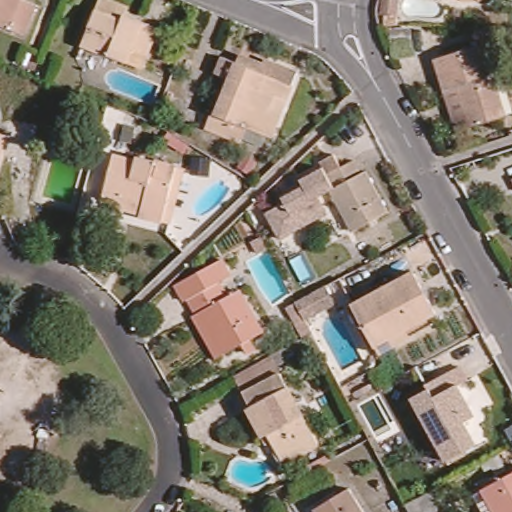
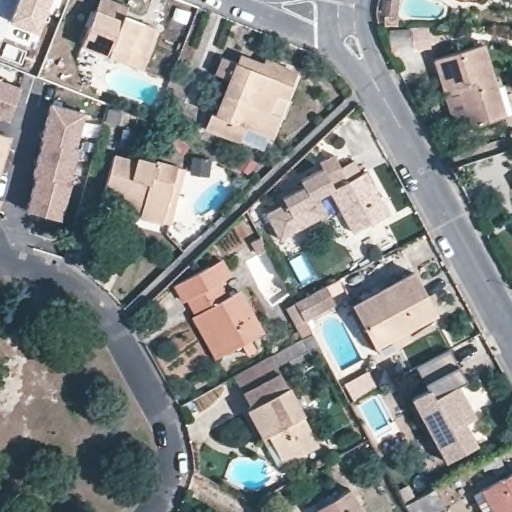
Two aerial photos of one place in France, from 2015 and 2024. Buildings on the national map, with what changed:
unchanged [(44,9),(33,37),(0,24),(0,0),(29,0),(28,2),(44,9)]
unchanged [(141,72),(83,50),(96,14),(102,0),(103,0),(128,11),(125,19),(157,31),(141,72)]
demolished [(423,63),(403,66),(401,41),(420,38),(423,63)]
unchanged [(449,91),(438,59),(485,42),(510,121),(479,130),(463,135),(449,91)]
unchanged [(274,136),(250,127),(243,141),(208,126),(213,112),(218,113),(233,77),(220,72),(226,55),(241,61),(245,54),(267,62),(268,59),(301,71),(290,97),(283,114),(274,136)]
new [(21,86),(10,118),(0,115),(0,78),(21,86)]
new [(38,174),(35,173),(45,138),(43,137),(53,102),(85,112),(75,147),(78,148),(68,182),(70,183),(61,218),(28,209),(38,174)]
unchanged [(17,133),(0,179),(0,127),(17,133)]
unchanged [(119,202),(101,197),(114,157),(148,165),(150,159),(183,168),(179,184),(168,225),(161,222),(138,215),(138,214),(117,207),(119,202)]
unchanged [(323,185),(327,191),(312,200),(322,218),(275,243),(260,217),(282,205),(280,199),(302,187),(298,179),(332,160),(342,173),(323,185)]
unchanged [(365,176),(370,173),(393,215),(357,234),(335,194),(330,196),(327,191),(323,185),(342,173),(358,164),(365,176)]
unchanged [(273,256),(267,258),(260,246),(266,242),(273,256)]
unchanged [(190,323),(201,317),(184,285),(211,267),(229,257),(238,275),(221,285),(230,301),(242,295),(265,335),(230,356),(215,364),(190,323)]
unchanged [(432,311),(422,317),(426,325),(379,351),(352,302),(411,270),(432,311)]
unchanged [(307,346),(310,343),(295,313),(302,310),(335,292),(342,307),(310,325),(317,340),(323,352),(314,357),(307,346)]
unchanged [(478,446),(447,462),(413,400),(430,391),(428,387),(461,367),(470,382),(460,387),(477,418),(489,440),(478,446)]
unchanged [(325,439),(290,459),(275,431),(270,433),(255,405),(258,403),(252,391),(288,371),(325,439)]
unchanged [(512,471),(512,512),(493,512),(480,488),(512,471)]
new [(447,512),(410,512),(400,490),(410,484),(417,497),(433,488),(447,512)]
unchanged [(315,512),(313,509),(348,488),(363,512),(315,512)]

